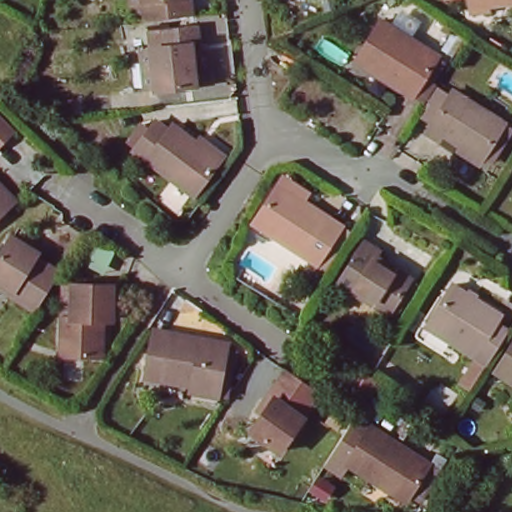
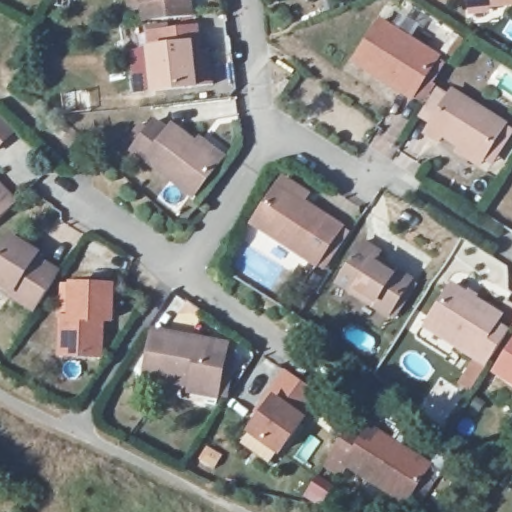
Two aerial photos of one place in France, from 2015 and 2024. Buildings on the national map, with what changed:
unchanged [(188,24),(139,29),(136,0),(186,0),(188,24)]
unchanged [(471,0),(512,0),(512,1),(472,6),(471,0)]
unchanged [(435,60),(411,98),(396,89),(398,85),(376,70),(374,75),(356,62),(380,24),(435,60)]
unchanged [(149,97),(145,57),(162,55),(159,36),(191,34),(192,52),(195,74),(186,74),(188,94),(149,97)]
unchanged [(504,127),(482,162),(444,137),(440,144),(426,134),(452,95),(504,127)]
unchanged [(132,151),(135,147),(127,141),(139,126),(147,131),(155,121),(168,130),(172,126),(195,144),(199,137),(224,156),(220,162),(193,196),(132,151)]
unchanged [(8,132),(0,140),(0,123),(8,132)]
unchanged [(313,264),(251,224),(275,187),(279,180),(307,197),(303,205),(337,227),(313,264)]
unchanged [(12,205),(0,217),(0,191),(12,205)]
unchanged [(0,289),(0,248),(7,237),(33,254),(31,258),(55,273),(32,310),(0,289)]
unchanged [(387,315),(338,281),(365,240),(381,251),(377,256),(410,278),(387,315)]
unchanged [(92,357),(57,356),(58,321),(67,321),(68,282),(110,284),(110,322),(102,322),(101,357),(92,357)]
unchanged [(423,328),(450,286),(499,316),(495,324),(509,333),(487,368),(423,328)]
unchanged [(186,392),(187,385),(142,377),(148,330),(196,338),(196,342),(222,347),(214,390),(213,396),(186,392)]
unchanged [(512,342),(512,385),(493,372),(512,342)]
unchanged [(373,390),(365,400),(345,385),(353,375),(373,390)]
unchanged [(317,398),(299,424),(303,427),(280,458),(250,437),(272,405),(268,402),(286,376),(298,385),(310,393),(317,398)]
unchanged [(365,443),(372,433),(431,472),(413,501),(392,488),(389,495),(349,468),(352,465),(337,455),(351,434),(365,443)]

